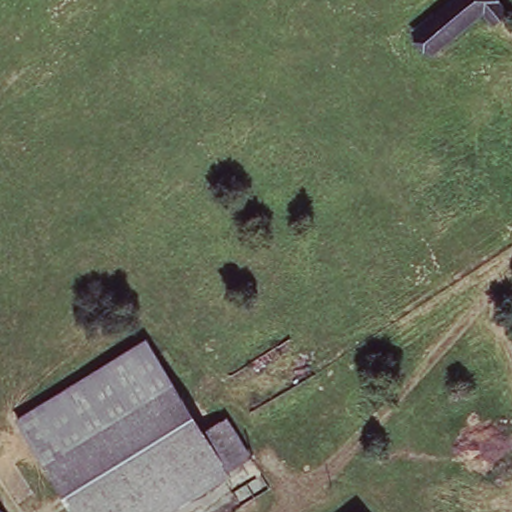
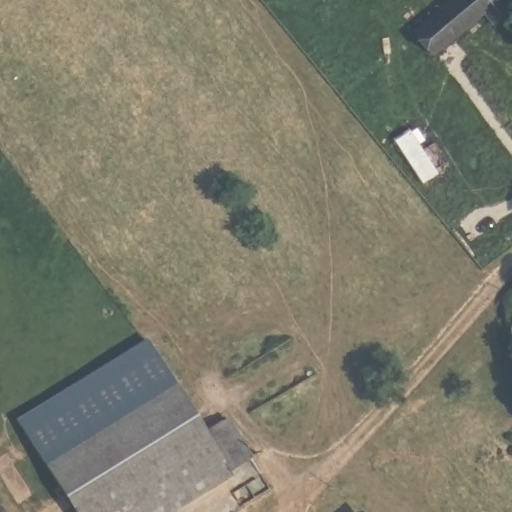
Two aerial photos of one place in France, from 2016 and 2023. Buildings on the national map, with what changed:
unchanged [(487,0),(502,20),(484,31),(474,19),(426,53),(412,29),(452,0),(487,0)]
unchanged [(229,468),(157,512),(77,512),(18,417),(145,336),(203,427),(229,468)]
unchanged [(223,415),(251,452),(229,468),(203,427),(223,415)]

